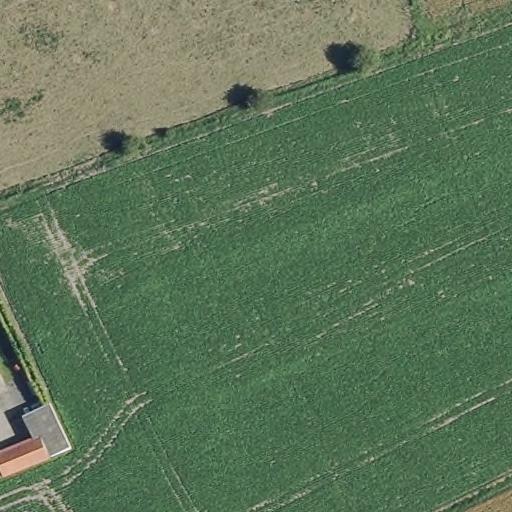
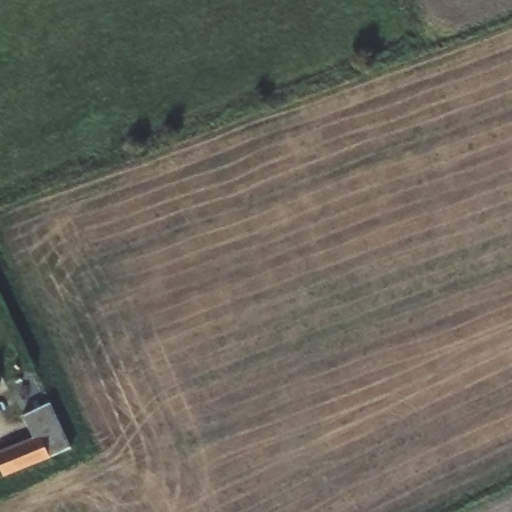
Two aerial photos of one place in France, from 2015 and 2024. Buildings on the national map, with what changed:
unchanged [(0,394),(0,391),(1,393),(0,394)]
unchanged [(0,471),(0,451),(30,439),(22,416),(50,404),(70,446),(2,475),(0,471)]

